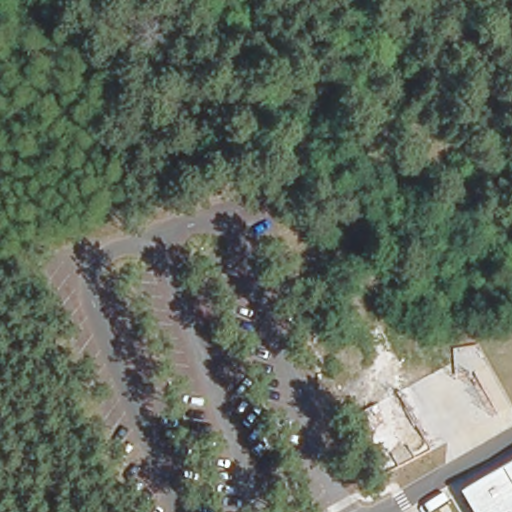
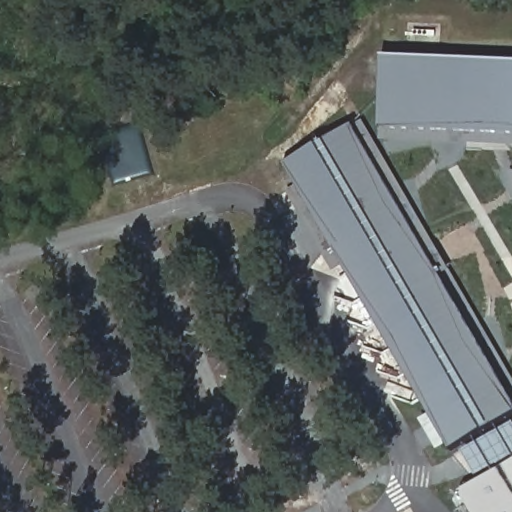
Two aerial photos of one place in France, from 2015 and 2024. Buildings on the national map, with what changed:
new [(382,55),(512,61),(512,133),(379,127),(382,55)]
new [(512,381),(512,402),(353,121),(363,115),(512,381)]
new [(353,121),(512,402),(512,412),(449,449),(286,161),(353,121)]
new [(512,438),(512,458),(472,482),(452,447),(501,418),(512,438)]
unchanged [(468,490),(512,464),(512,512),(480,512),(468,490)]

